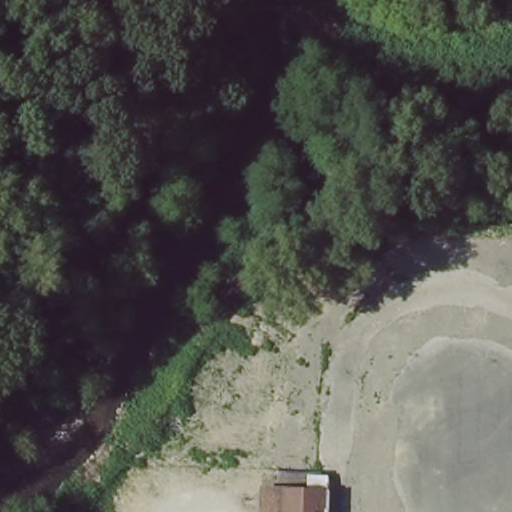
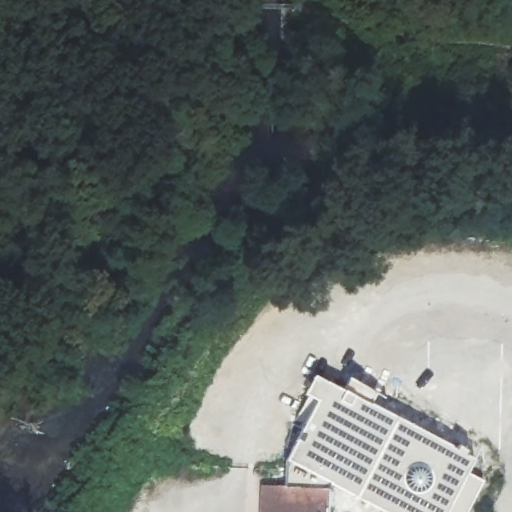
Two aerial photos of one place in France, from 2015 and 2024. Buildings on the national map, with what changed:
new [(325,382),(474,459),(445,512),(382,512),(285,460),(325,382)]
unchanged [(285,492),(335,495),(334,512),(284,512),(285,492)]

